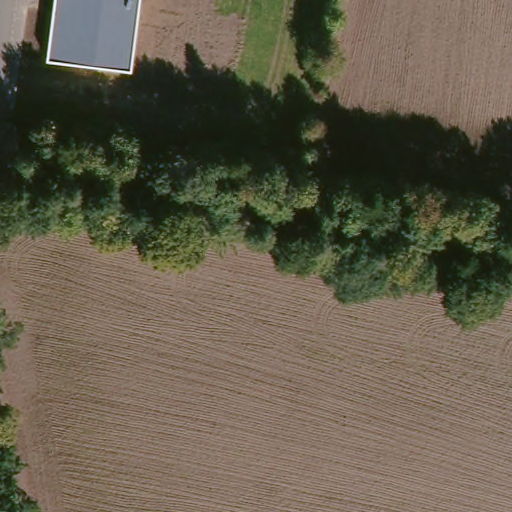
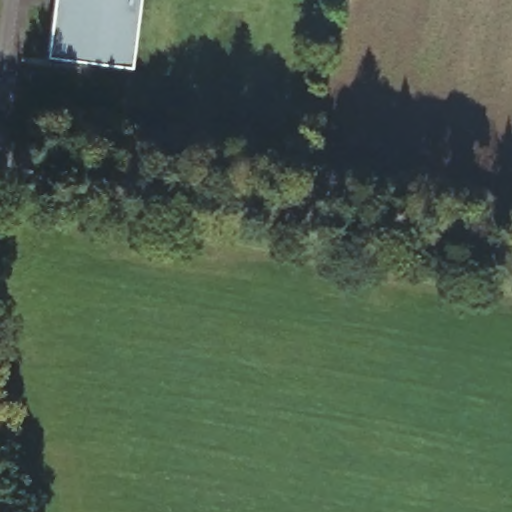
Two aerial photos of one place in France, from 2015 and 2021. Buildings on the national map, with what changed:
unchanged [(48,60),(55,0),(139,0),(129,71),(48,60)]

